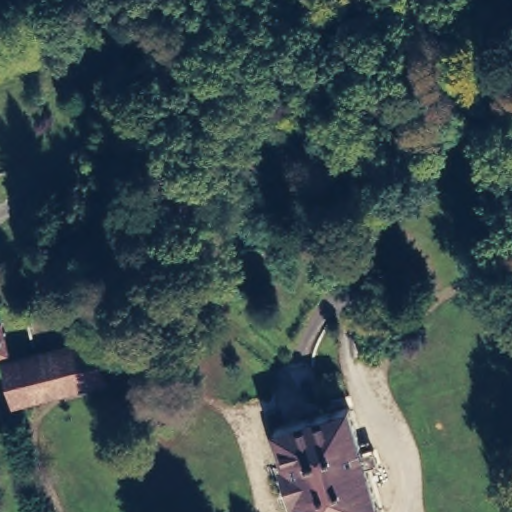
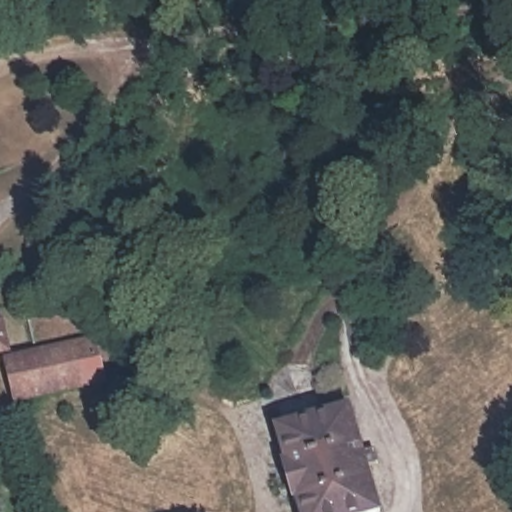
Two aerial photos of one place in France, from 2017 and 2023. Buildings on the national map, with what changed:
unchanged [(305,145),(305,159),(283,159),(284,146),(305,145)]
unchanged [(0,348),(0,317),(2,316),(10,345),(8,346),(0,348)]
unchanged [(98,340),(107,380),(55,391),(20,399),(11,357),(98,340)]
unchanged [(134,363),(130,365),(126,346),(130,345),(134,363)]
unchanged [(289,474),(287,466),(286,460),(288,460),(278,427),(327,412),(352,405),(365,450),(377,446),(383,461),(370,465),(383,511),(380,512),(304,512),(300,498),(297,499),(295,493),(293,487),(282,490),(280,477),(289,474)]

